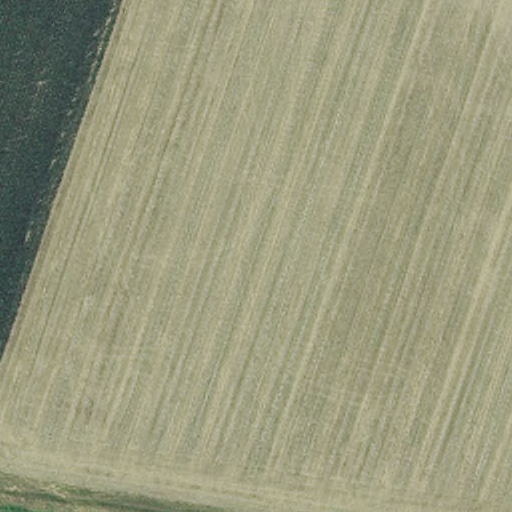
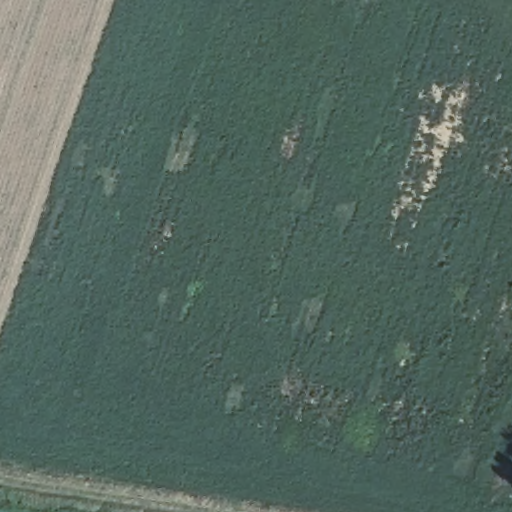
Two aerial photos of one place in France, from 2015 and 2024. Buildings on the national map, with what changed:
[]

